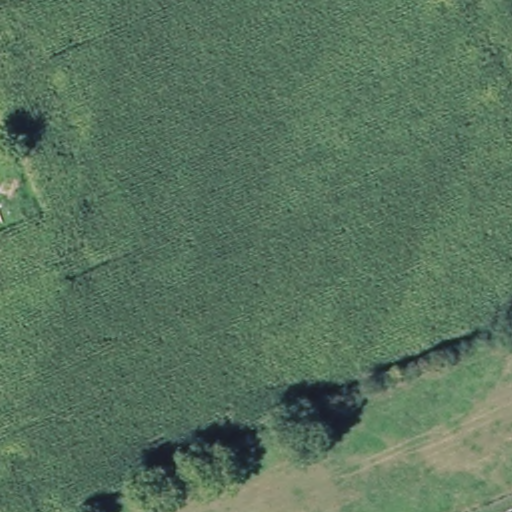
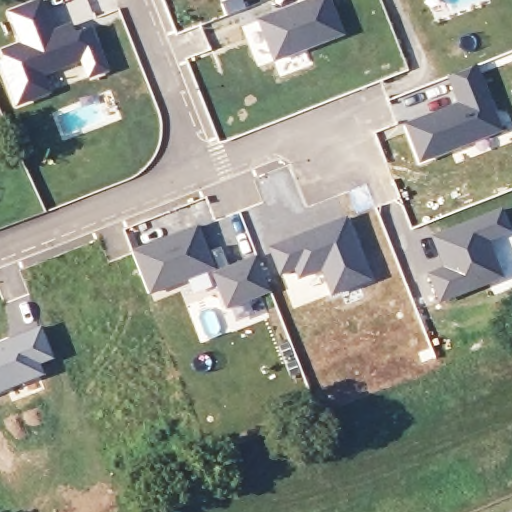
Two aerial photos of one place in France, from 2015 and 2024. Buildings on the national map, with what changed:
new [(5,10),(32,0),(43,0),(54,26),(71,20),(75,29),(82,26),(83,27),(91,24),(109,69),(84,78),(79,66),(49,77),(54,91),(14,107),(0,70),(0,58),(0,48),(17,41),(5,10)]
new [(226,16),(220,0),(242,0),(245,8),(226,16)]
new [(302,0),(331,0),(344,35),(272,62),(255,18),(302,0)]
new [(456,102),(447,75),(478,64),(499,123),(509,119),(512,128),(418,164),(402,122),(456,102)]
new [(258,220),(260,225),(269,222),(263,204),(289,195),(290,198),(299,195),(304,208),(337,198),(343,215),(349,213),(374,280),(329,295),(320,272),(296,279),(294,272),(279,276),(254,222),(258,220)]
new [(440,262),(429,235),(502,206),(512,231),(512,235),(499,240),(500,245),(509,242),(512,251),(512,277),(437,303),(424,270),(440,262)]
new [(199,223),(210,249),(221,246),(228,264),(210,272),(213,279),(210,280),(212,285),(193,292),(188,281),(149,294),(130,248),(199,223)]
new [(228,264),(255,254),(271,292),(225,310),(213,279),(210,272),(228,264)]
new [(54,359),(41,365),(45,374),(0,392),(0,342),(41,326),(54,359)]

